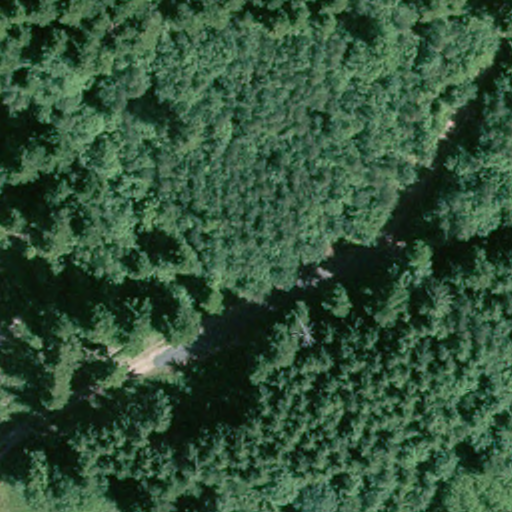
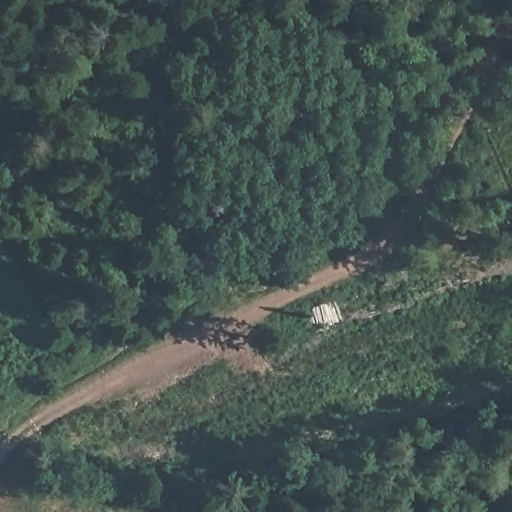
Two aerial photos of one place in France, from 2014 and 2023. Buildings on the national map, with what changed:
[]

